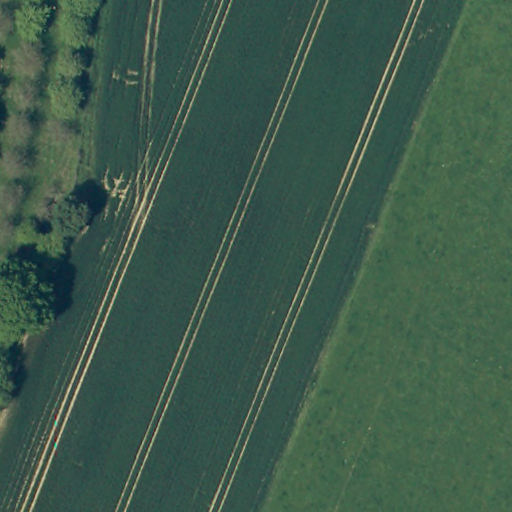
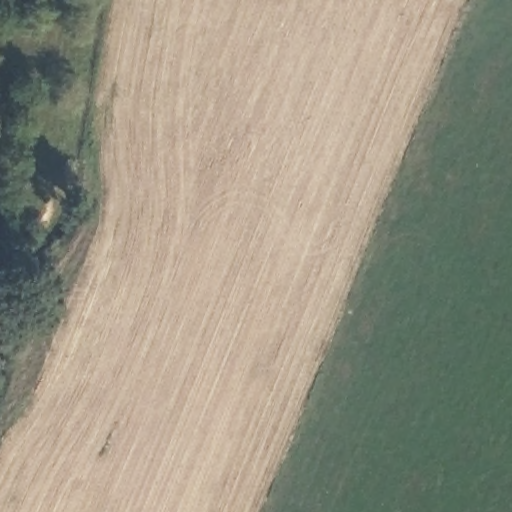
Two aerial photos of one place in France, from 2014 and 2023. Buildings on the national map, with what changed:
[]

